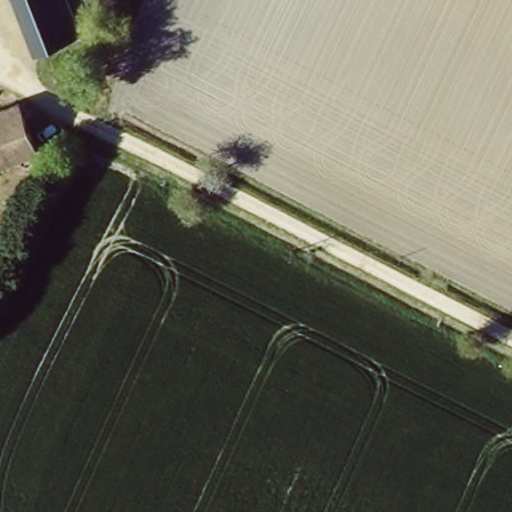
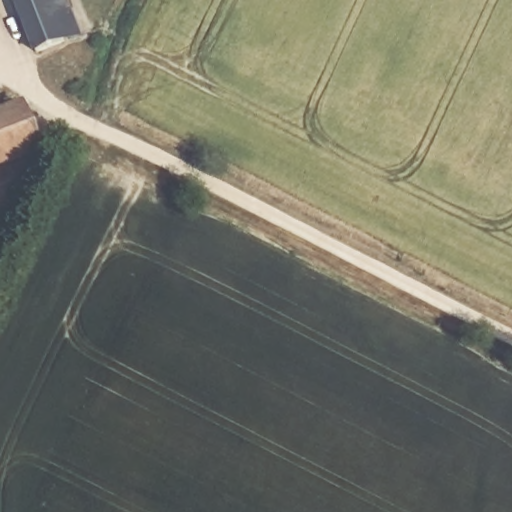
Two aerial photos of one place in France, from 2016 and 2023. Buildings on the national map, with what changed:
unchanged [(79,39),(37,56),(15,0),(64,0),(79,39)]
unchanged [(45,167),(20,177),(13,159),(0,164),(0,112),(21,104),(45,167)]

